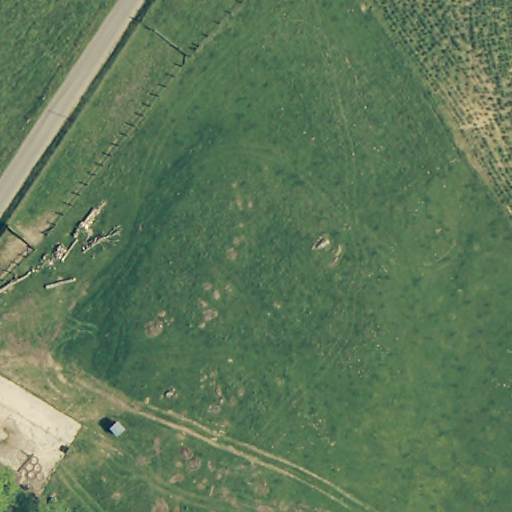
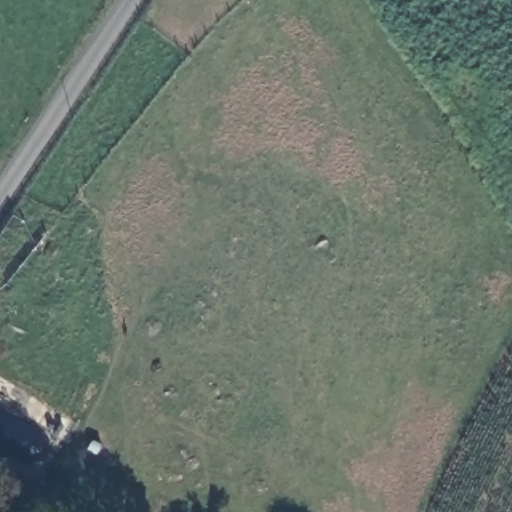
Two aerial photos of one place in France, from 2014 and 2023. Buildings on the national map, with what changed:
unchanged [(0,480),(7,484),(0,495),(0,480)]

